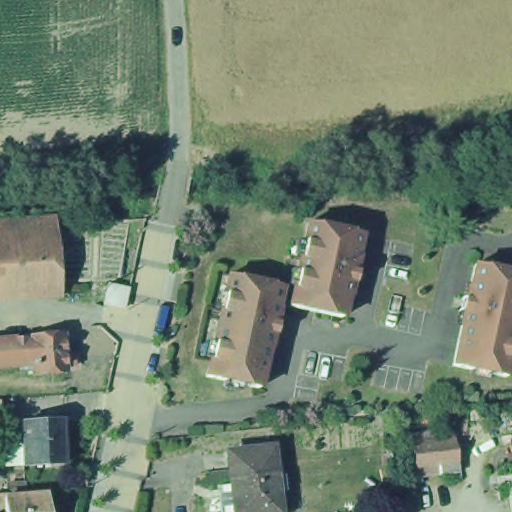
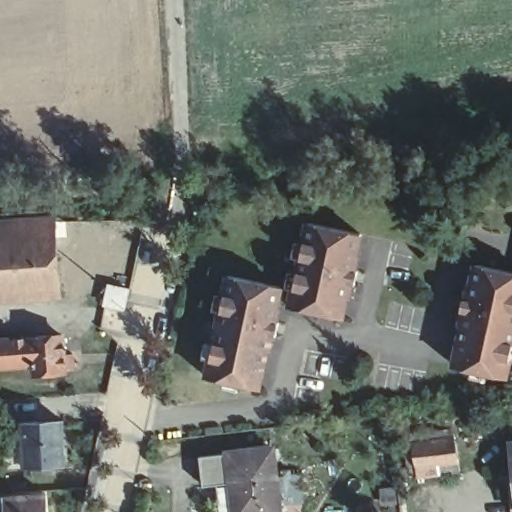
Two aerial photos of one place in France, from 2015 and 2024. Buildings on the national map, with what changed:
unchanged [(358,238),(350,273),(355,274),(352,289),(347,288),(340,321),(287,309),(306,226),(358,238)]
unchanged [(53,229),(55,249),(0,254),(0,233),(53,229)]
unchanged [(59,296),(0,300),(0,254),(55,249),(59,296)]
unchanged [(512,367),(509,381),(456,371),(468,317),(462,316),(466,301),(470,302),(477,269),(512,276),(512,367)]
unchanged [(278,290),(271,324),(275,325),(271,340),(267,338),(256,393),(205,381),(226,279),(278,290)]
unchanged [(105,308),(110,289),(128,293),(124,312),(105,308)]
unchanged [(61,337),(63,358),(71,357),(72,368),(64,368),(65,374),(35,377),(33,365),(0,369),(0,344),(61,337)]
unchanged [(7,419),(0,420),(0,402),(5,402),(7,419)]
unchanged [(63,423),(65,466),(25,468),(25,463),(15,464),(15,455),(25,455),(23,425),(63,423)]
unchanged [(460,436),(466,468),(423,473),(419,441),(460,436)]
unchanged [(222,489),(237,487),(234,454),(277,449),(280,478),(290,477),(292,493),(282,495),(284,512),(225,512),(222,489)]
unchanged [(512,489),(512,505),(510,490),(512,489)]
unchanged [(0,509),(0,500),(2,500),(2,496),(41,492),(43,512),(0,512),(0,509)]

